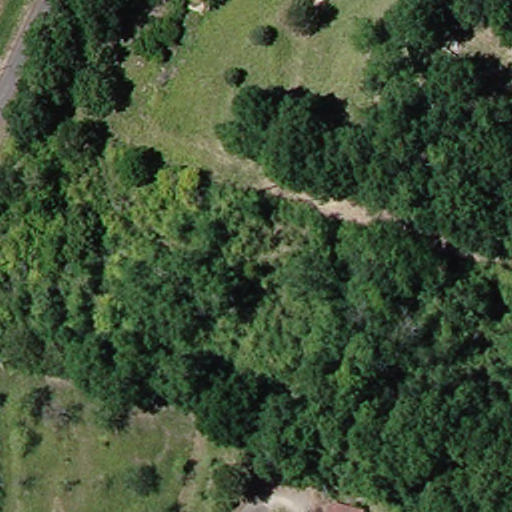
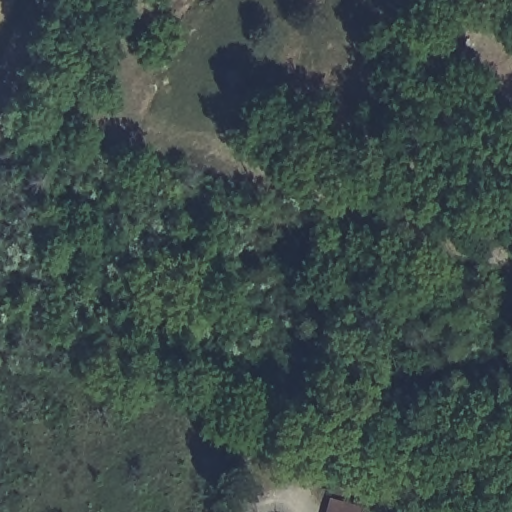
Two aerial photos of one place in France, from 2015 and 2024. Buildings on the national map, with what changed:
unchanged [(335,500),(368,510),(368,512),(332,512),(335,500)]

